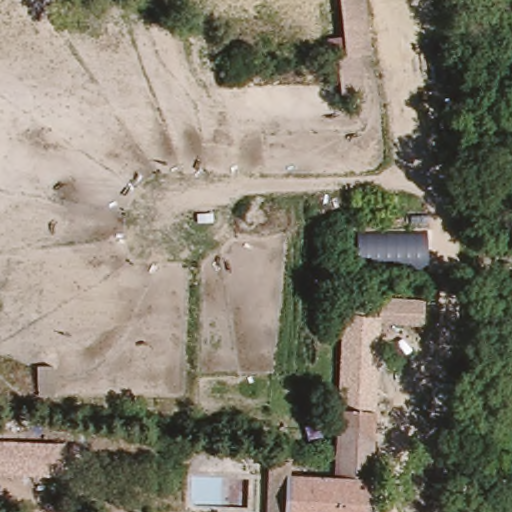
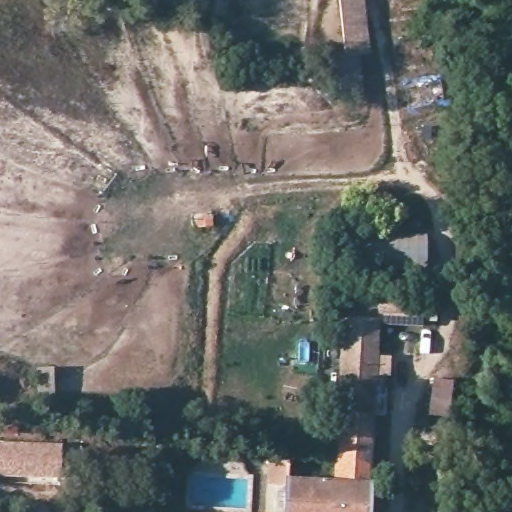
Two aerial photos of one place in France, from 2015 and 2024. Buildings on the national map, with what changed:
unchanged [(371,57),(359,60),(361,100),(341,102),(336,58),(344,57),(341,0),(365,0),(371,57)]
unchanged [(428,270),(357,269),(356,230),(429,230),(428,270)]
unchanged [(376,312),(376,299),(426,302),(424,327),(377,325),(376,312)]
unchanged [(381,512),(255,512),(253,472),(336,467),(341,315),(376,312),(381,512)]
unchanged [(58,476),(0,473),(0,441),(57,442),(58,476)]

